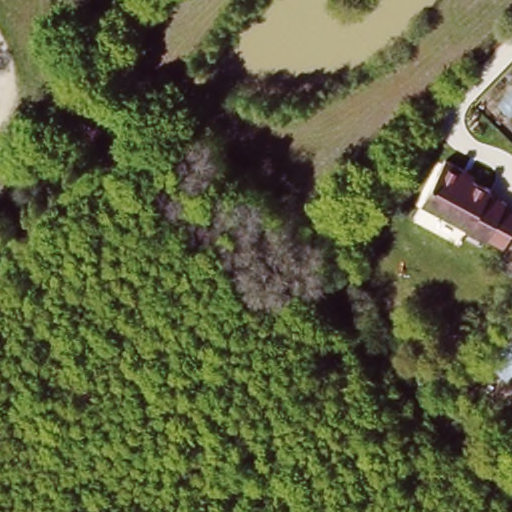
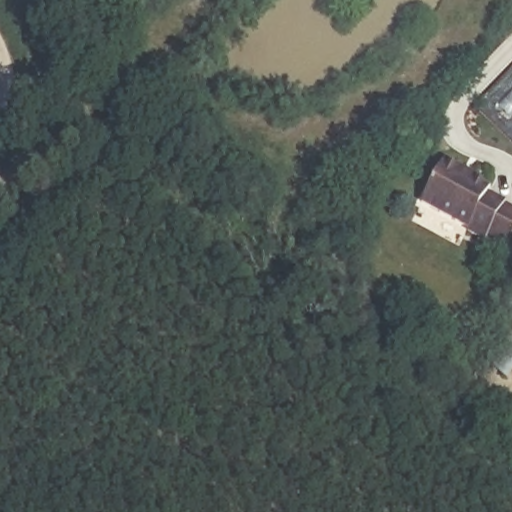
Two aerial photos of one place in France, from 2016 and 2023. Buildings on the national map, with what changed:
unchanged [(500,192),(497,200),(508,204),(488,246),(475,240),(478,235),(428,212),(448,170),(500,192)]
unchanged [(483,368),(512,335),(512,385),(507,390),(483,368)]

